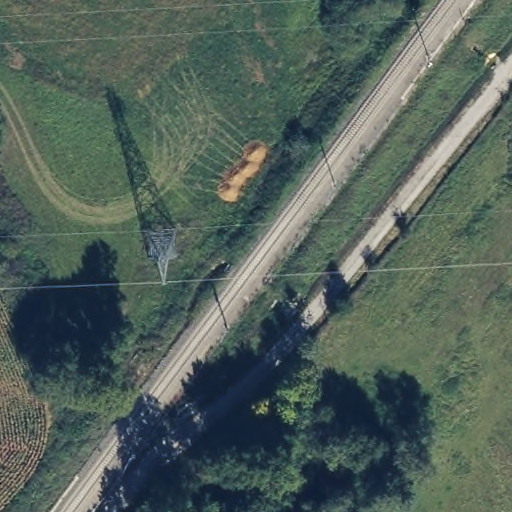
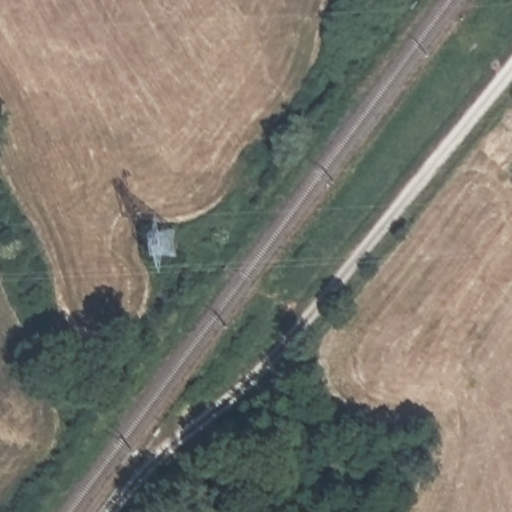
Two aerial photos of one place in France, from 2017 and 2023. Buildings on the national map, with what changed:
unchanged [(174,234),(176,265),(144,266),(143,234),(174,234)]

